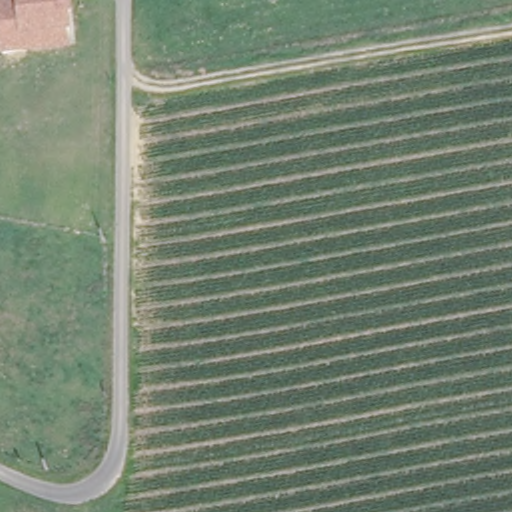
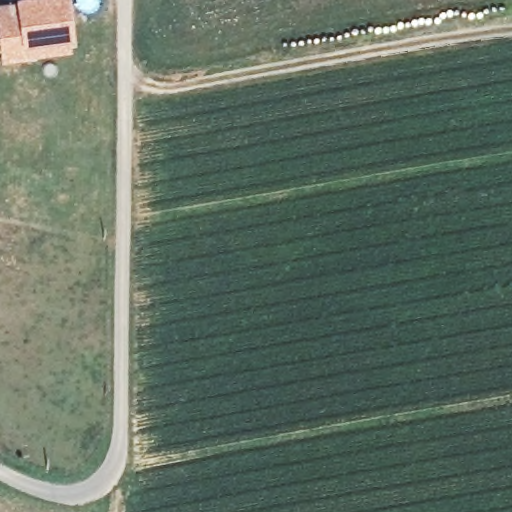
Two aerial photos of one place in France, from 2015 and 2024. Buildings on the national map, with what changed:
unchanged [(26,56),(2,59),(1,57),(0,43),(0,8),(18,6),(18,0),(64,0),(67,36),(69,45),(69,51),(26,56)]

